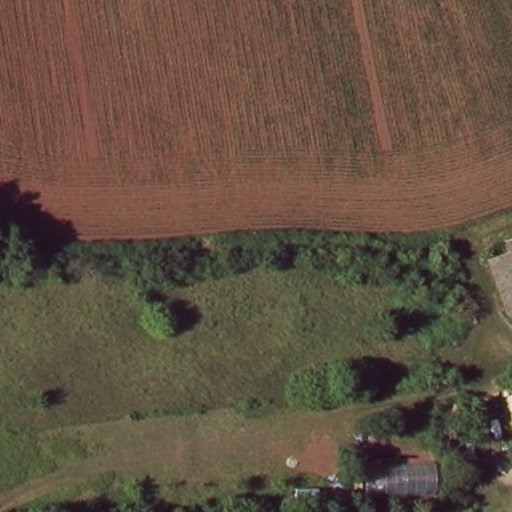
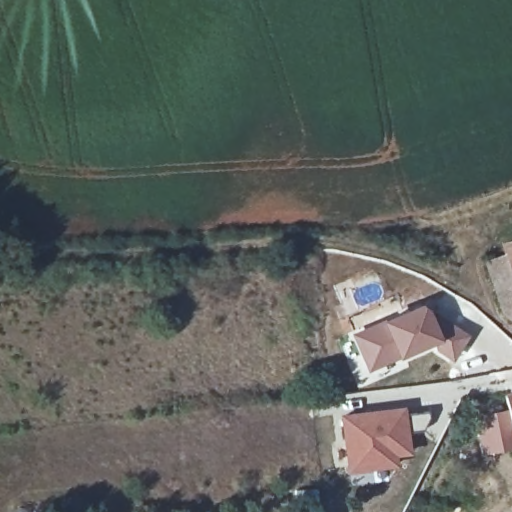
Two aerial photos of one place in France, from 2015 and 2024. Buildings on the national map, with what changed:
unchanged [(503,254),(497,242),(512,237),(512,328),(512,327),(496,309),(480,261),(503,254)]
new [(433,301),(476,330),(458,355),(437,341),(374,369),(356,332),(433,301)]
unchanged [(504,393),(503,391),(512,389),(512,427),(504,393)]
new [(406,407),(412,455),(396,457),(397,467),(348,473),(341,413),(406,407)]

